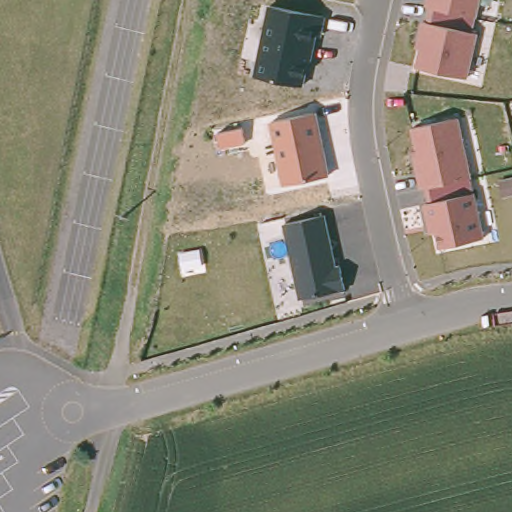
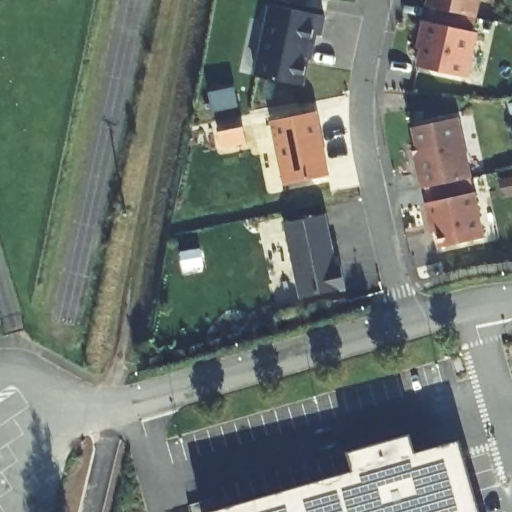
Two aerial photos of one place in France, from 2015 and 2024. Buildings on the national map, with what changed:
unchanged [(415,47),(421,21),(428,22),(431,6),(427,5),(428,0),(481,0),(477,19),(473,33),(478,34),(468,78),(416,66),(420,48),(415,47)]
unchanged [(303,86),(255,76),(269,6),(324,17),(321,37),(317,37),(313,60),(309,58),(303,86)]
unchanged [(316,112),(329,176),(283,185),(270,122),(316,112)]
unchanged [(484,238),(440,247),(437,232),(430,234),(424,204),(429,203),(426,189),(421,190),(412,147),(416,147),(412,128),(459,118),(472,177),(475,193),(484,238)]
unchanged [(341,265),(346,289),(300,300),(284,223),(326,215),(336,265),(341,265)]
new [(377,446),(412,436),(416,456),(445,447),(465,512),(223,512),(383,466),(377,446)]

